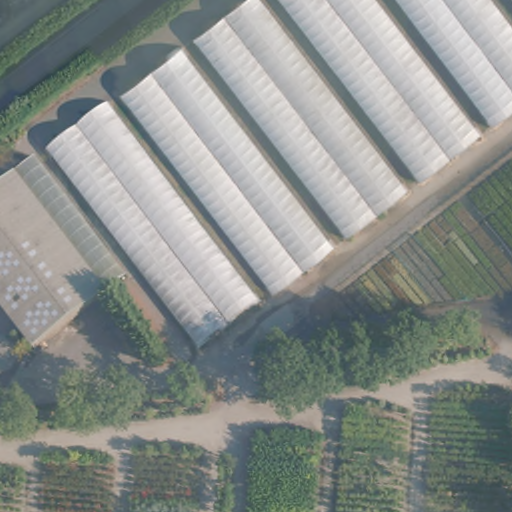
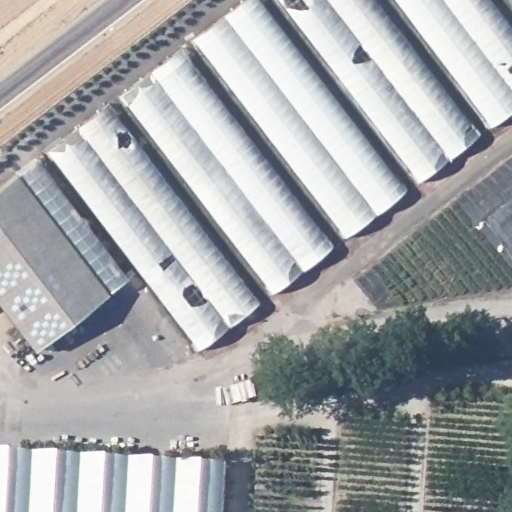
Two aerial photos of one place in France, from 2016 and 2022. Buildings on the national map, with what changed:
unchanged [(262,0),(408,189),(344,238),(191,41),(244,0),(262,0)]
unchanged [(417,182),(276,0),(378,0),(481,133),(417,182)]
unchanged [(512,110),(490,127),(391,0),(493,0),(512,25),(512,110)]
unchanged [(512,0),(512,3),(510,0),(512,0)]
unchanged [(182,47),(335,245),(271,294),(118,97),(182,47)]
unchanged [(109,104),(262,302),(198,351),(45,154),(109,104)]
new [(36,157),(129,279),(108,294),(16,175),(36,157)]
unchanged [(16,175),(108,294),(35,350),(0,305),(0,186),(16,175)]
new [(227,465),(224,512),(0,512),(0,452),(227,465)]

